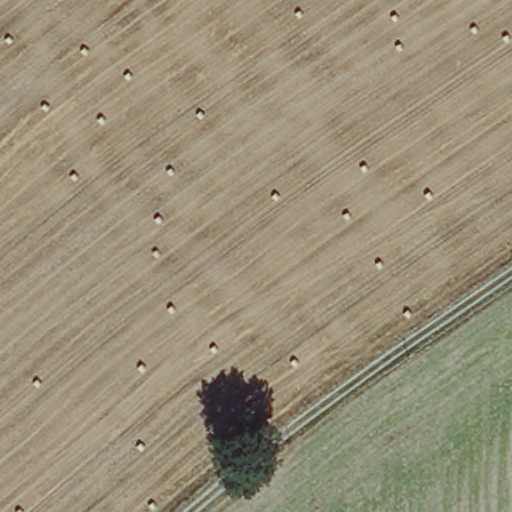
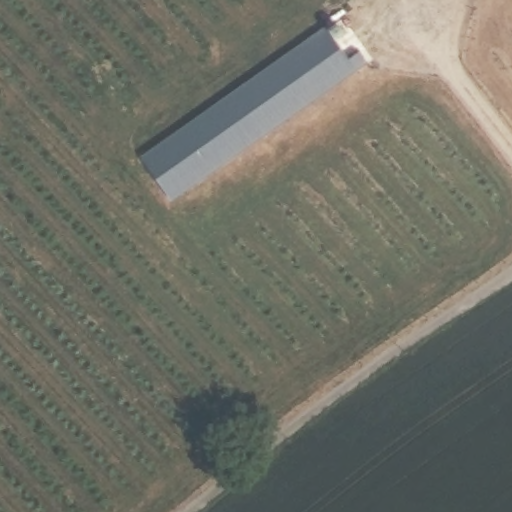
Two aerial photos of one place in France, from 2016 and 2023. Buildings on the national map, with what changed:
new [(148,143),(333,11),(366,53),(175,190),(148,143)]

